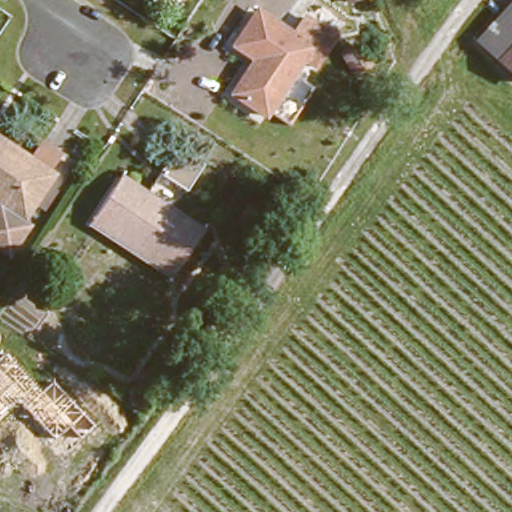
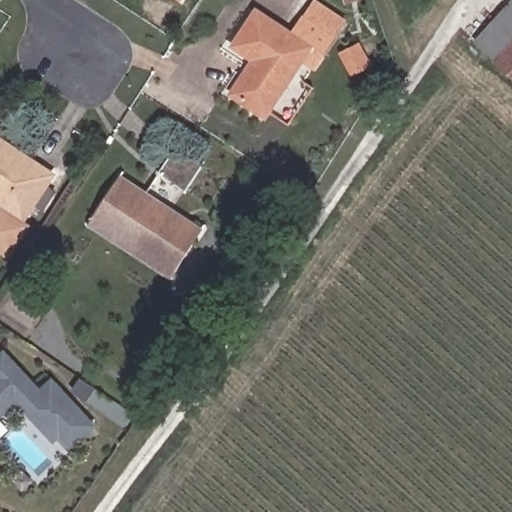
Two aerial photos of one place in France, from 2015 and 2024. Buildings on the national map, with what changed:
unchanged [(260,114),(226,92),(248,56),(229,42),(252,11),(285,31),(297,12),(305,0),(313,0),(337,15),(327,32),(332,35),(322,54),(315,65),(298,55),(292,66),(306,76),(298,89),(282,79),(260,114)]
unchanged [(337,5),(336,0),(355,0),(337,5)]
unchanged [(478,35),(512,0),(512,65),(478,35)]
unchanged [(343,70),(335,49),(351,42),(359,62),(343,70)]
unchanged [(32,220),(29,217),(26,221),(35,228),(16,257),(0,245),(0,218),(1,217),(10,223),(18,210),(0,198),(0,136),(61,176),(32,220)]
unchanged [(210,167),(191,197),(161,179),(181,148),(210,167)]
unchanged [(87,216),(117,174),(130,182),(123,192),(137,202),(145,192),(201,231),(173,273),(87,216)]
unchanged [(224,261),(236,270),(224,287),(212,278),(224,261)]
unchanged [(0,307),(0,292),(7,297),(0,307)]
unchanged [(69,426),(54,440),(17,401),(0,417),(0,356),(3,353),(40,393),(52,382),(92,426),(80,437),(69,426)]

